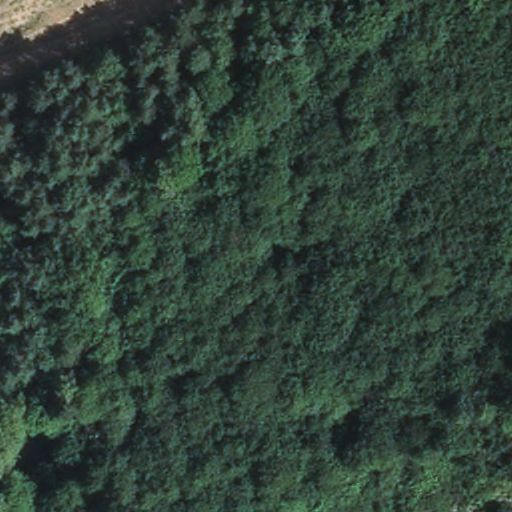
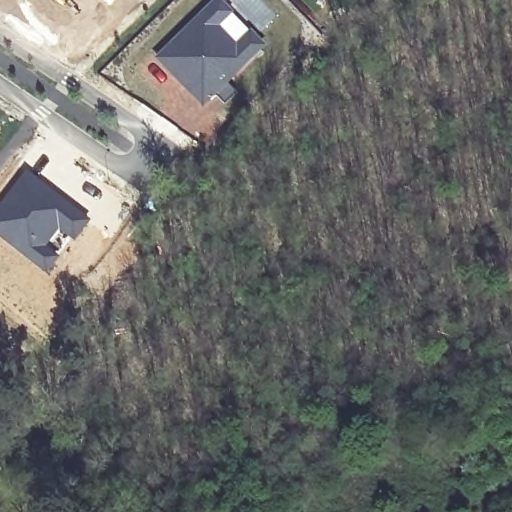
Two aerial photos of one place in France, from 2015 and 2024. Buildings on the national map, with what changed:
new [(105,0),(107,0),(107,1),(105,0)]
new [(222,0),(266,44),(229,82),(236,91),(224,103),(216,95),(204,107),(154,56),(212,0),(222,0)]
new [(26,168),(90,219),(74,240),(60,230),(49,244),(60,253),(47,274),(0,237),(0,201),(26,168)]
new [(1,339),(0,340),(0,338),(1,339)]

